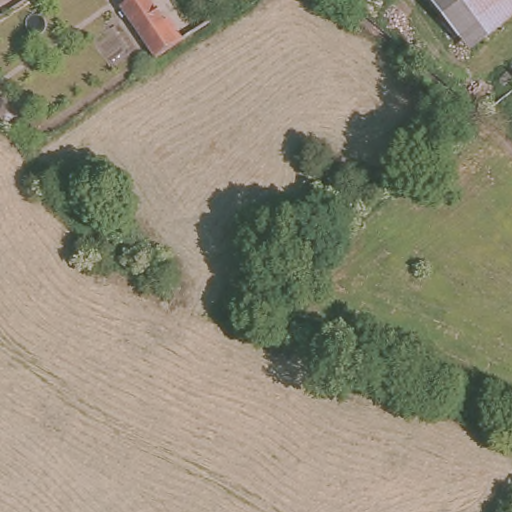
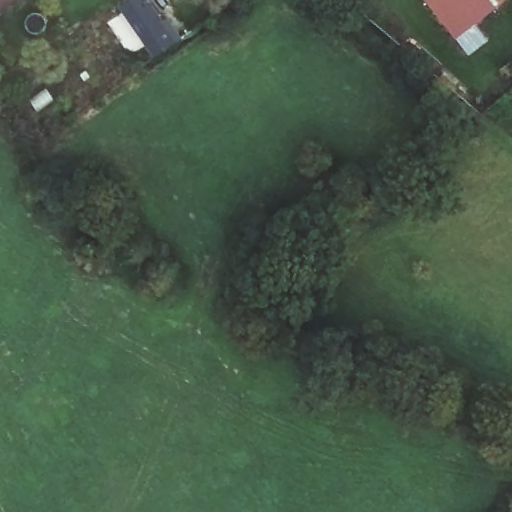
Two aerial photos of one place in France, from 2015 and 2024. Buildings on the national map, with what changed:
unchanged [(153,52),(117,0),(118,0),(151,0),(161,13),(167,10),(183,32),(153,52)]
unchanged [(465,47),(426,0),(512,0),(512,11),(465,47)]

